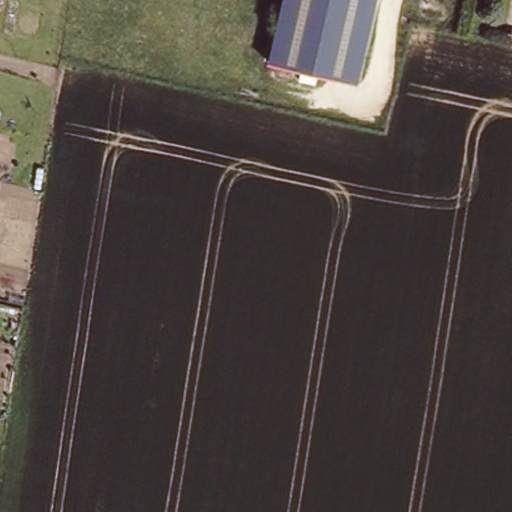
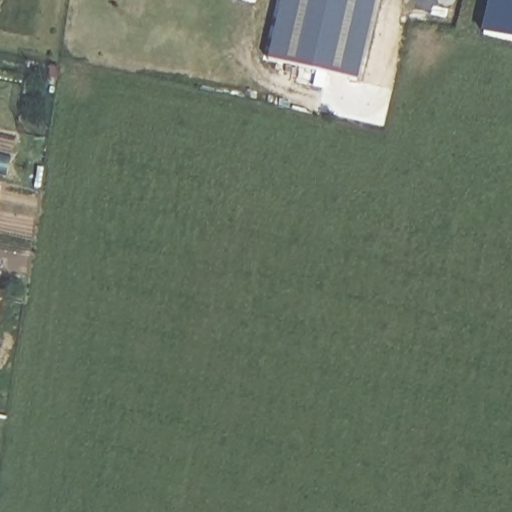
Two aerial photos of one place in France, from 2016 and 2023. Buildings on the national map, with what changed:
unchanged [(268,51),(279,0),(328,0),(379,12),(364,74),(268,51)]
unchanged [(328,0),(381,0),(379,12),(328,0)]
new [(490,0),(512,0),(512,42),(482,36),(490,0)]

